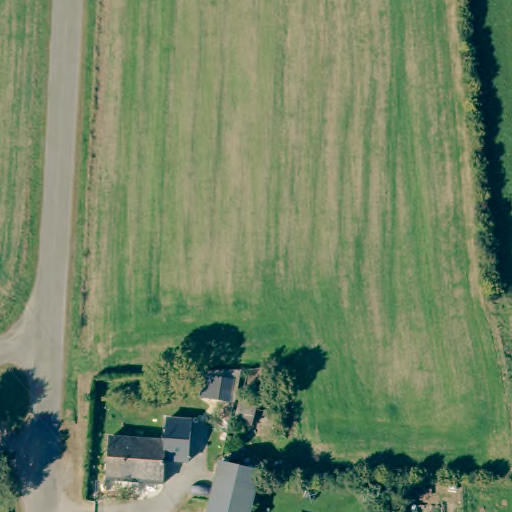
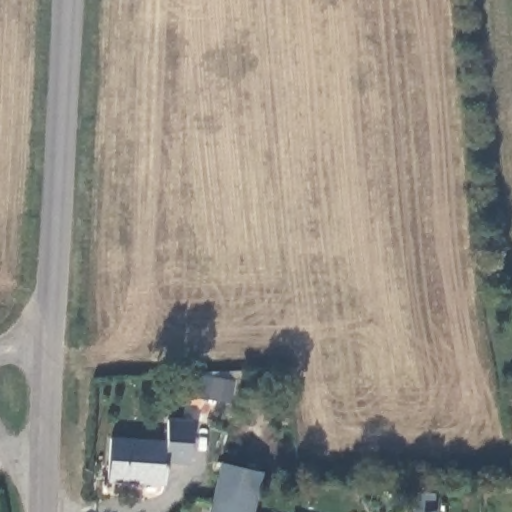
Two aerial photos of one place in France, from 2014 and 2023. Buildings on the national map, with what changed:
unchanged [(165,444),(167,419),(193,420),(189,466),(164,464),(165,444)]
unchanged [(109,441),(165,444),(163,483),(108,479),(109,441)]
unchanged [(213,512),(216,499),(226,461),(264,471),(254,512),(213,512)]

